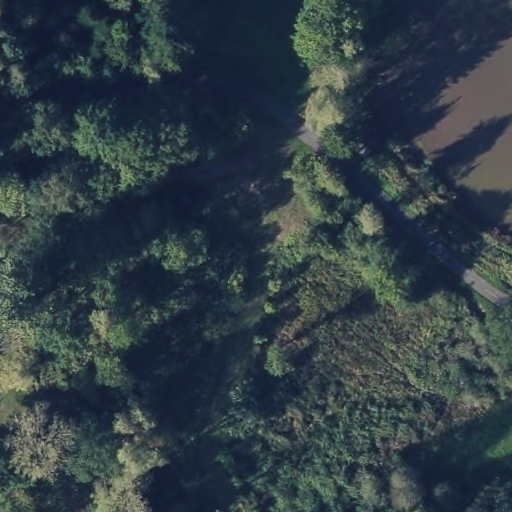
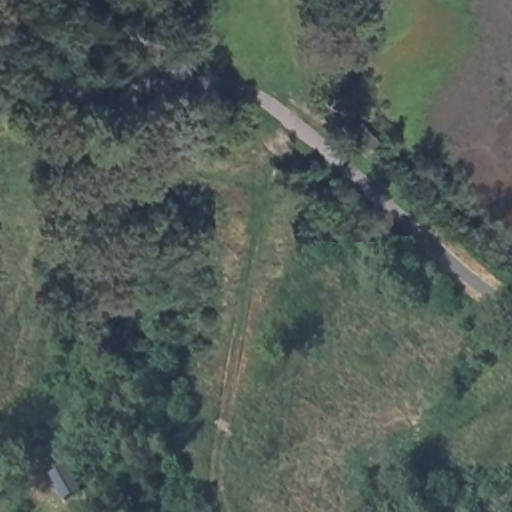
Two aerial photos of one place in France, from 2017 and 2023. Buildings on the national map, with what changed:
unchanged [(85,512),(53,512),(47,504),(72,483),(92,507),(85,512)]

